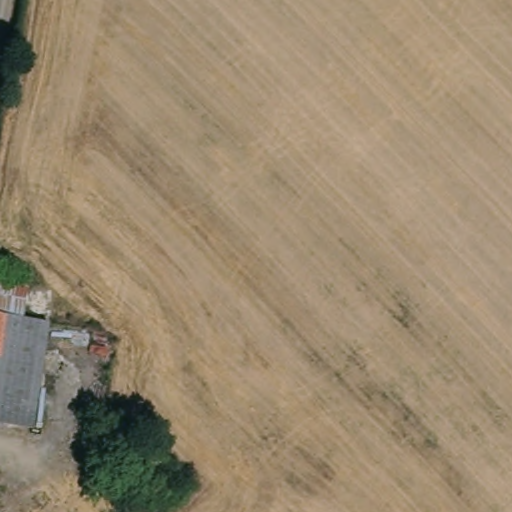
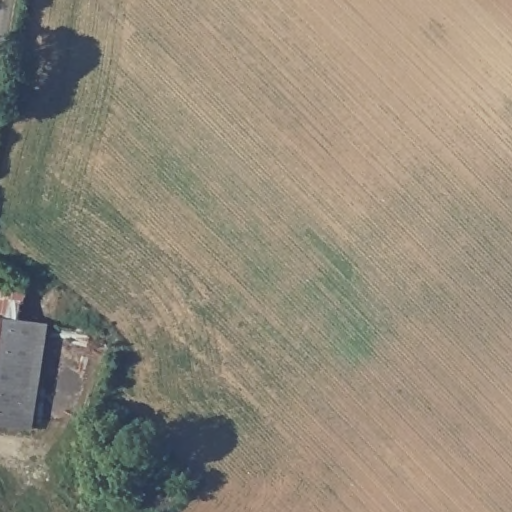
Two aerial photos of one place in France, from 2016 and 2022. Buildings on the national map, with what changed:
unchanged [(27,429),(0,425),(0,315),(44,324),(27,429)]
unchanged [(112,420),(126,432),(117,440),(104,428),(112,420)]

